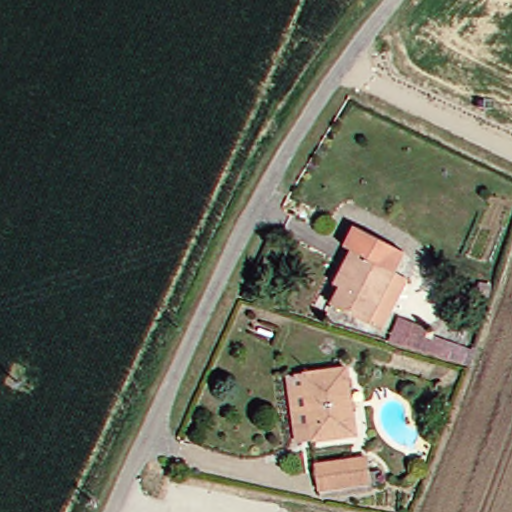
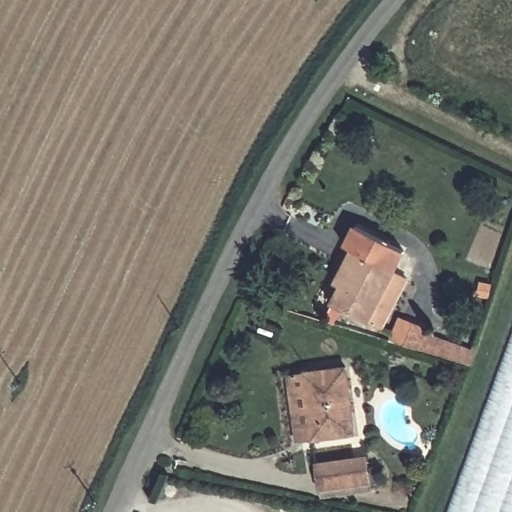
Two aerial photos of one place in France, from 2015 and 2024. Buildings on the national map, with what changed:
unchanged [(327,303),(338,281),(326,276),(341,246),(336,244),(347,224),(395,249),(360,319),(327,303)]
unchanged [(403,326),(395,347),(380,341),(389,319),(403,326)]
new [(448,512),(512,336),(512,512),(448,512)]
unchanged [(284,373),(331,369),(337,436),(291,439),(284,373)]
unchanged [(360,487),(316,490),(312,465),(358,462),(360,487)]

